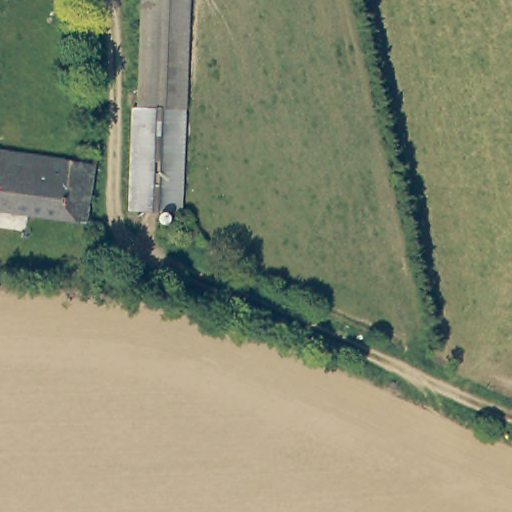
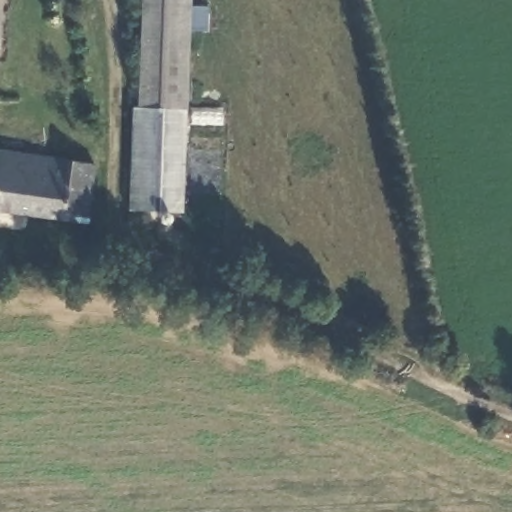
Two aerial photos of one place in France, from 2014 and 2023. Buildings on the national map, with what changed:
unchanged [(183,121),(182,215),(128,213),(131,105),(137,104),(142,0),(190,0),(183,121)]
unchanged [(83,224),(0,212),(0,153),(89,166),(83,224)]

